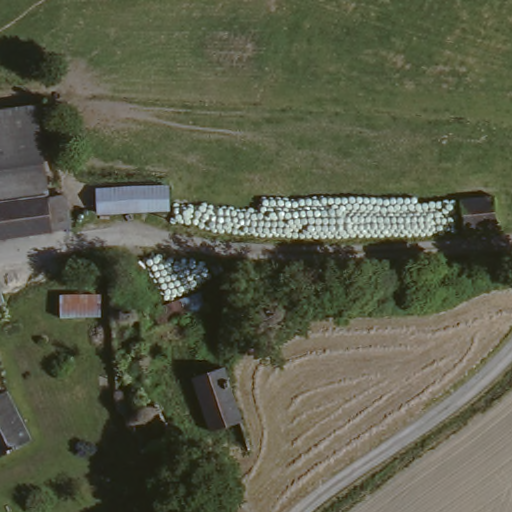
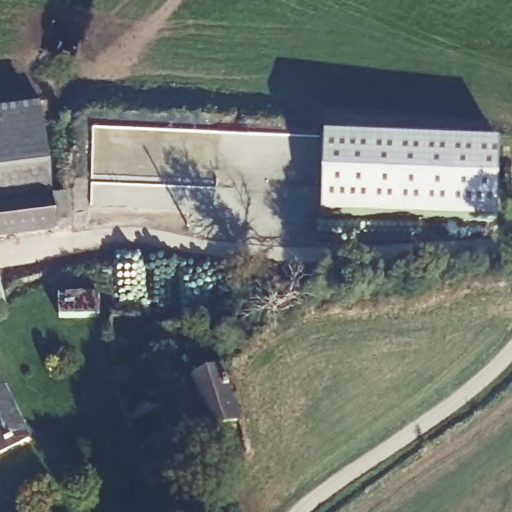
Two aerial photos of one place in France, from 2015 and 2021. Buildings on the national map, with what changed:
unchanged [(51,198),(40,200),(0,206),(0,104),(37,99),(51,198)]
new [(501,135),(497,212),(322,205),(325,128),(501,135)]
unchanged [(91,188),(162,185),(165,218),(92,223),(91,188)]
unchanged [(45,231),(0,238),(0,206),(40,200),(41,205),(45,231)]
demolished [(445,237),(440,207),(475,204),(481,232),(445,237)]
unchanged [(96,299),(96,323),(54,322),(55,297),(96,299)]
unchanged [(232,423),(203,432),(189,381),(217,372),(232,423)]
unchanged [(25,445),(0,457),(0,394),(11,415),(25,445)]

